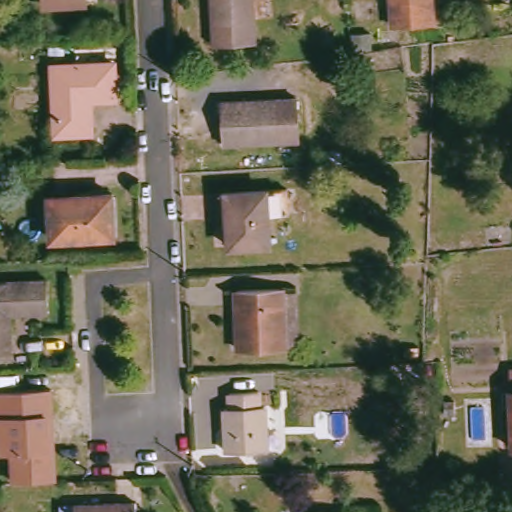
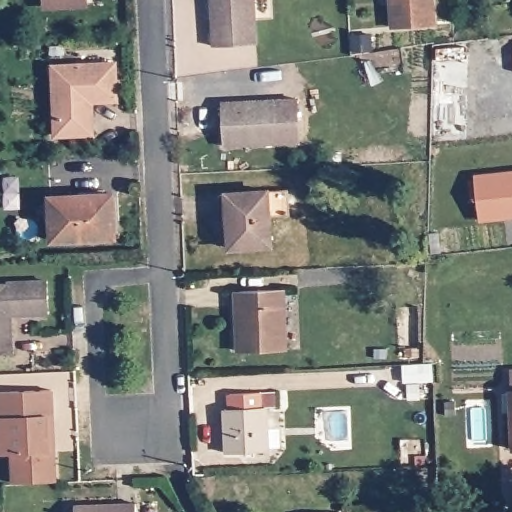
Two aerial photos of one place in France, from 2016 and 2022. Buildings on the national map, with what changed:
unchanged [(48,0),(90,0),(90,2),(48,1),(48,0)]
unchanged [(263,44),(218,47),(216,0),(261,0),(263,44)]
unchanged [(431,19),(391,20),(390,0),(430,0),(431,19)]
unchanged [(371,31),(371,47),(353,48),(352,32),(371,31)]
unchanged [(59,66),(121,66),(121,101),(98,101),(98,131),(60,132),(59,66)]
unchanged [(224,98),(300,95),(302,144),(226,146),(224,98)]
new [(479,220),(475,174),(512,170),(512,217),(479,220)]
unchanged [(238,229),(231,229),(231,192),(271,190),(273,246),(239,247),(238,229)]
unchanged [(57,193),(119,192),(119,235),(57,236),(57,193)]
unchanged [(48,315),(13,315),(14,356),(0,356),(0,282),(48,281),(48,315)]
unchanged [(240,285),(281,284),(283,345),(242,346),(240,285)]
new [(512,390),(511,368),(512,368),(512,450),(509,390),(512,390)]
unchanged [(59,483),(14,485),(13,457),(0,458),(0,396),(55,393),(59,483)]
unchanged [(227,407),(234,407),(234,393),(262,393),(263,406),(269,406),(270,451),(228,451),(227,407)]
unchanged [(139,499),(140,512),(77,512),(77,500),(139,499)]
unchanged [(349,512),(311,512),(311,509),(343,508),(349,508),(349,512)]

